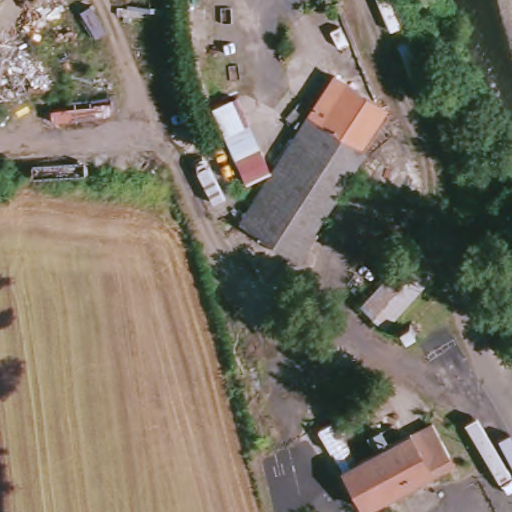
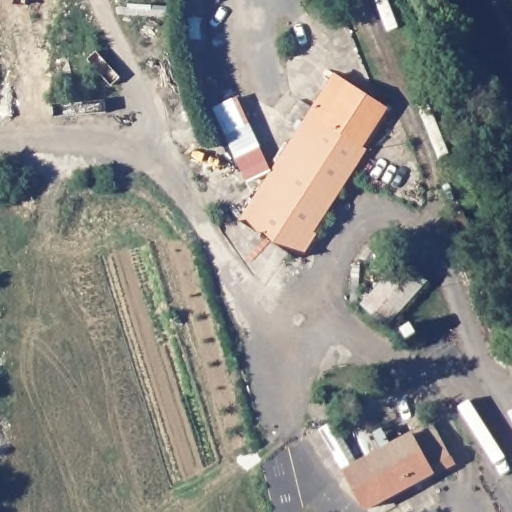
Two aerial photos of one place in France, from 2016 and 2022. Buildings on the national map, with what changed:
unchanged [(201,72),(199,58),(209,56),(212,73),(233,65),(245,98),(237,101),(215,110),(201,72)]
unchanged [(315,117),(317,113),(318,111),(334,88),(345,95),(370,111),(373,106),(377,108),(384,112),(380,117),(362,147),(315,117)]
unchanged [(215,110),(237,101),(263,176),(242,184),(215,110)]
unchanged [(315,117),(362,147),(366,150),(301,252),(249,219),(260,201),(315,117)]
unchanged [(402,262),(423,279),(390,324),(367,308),(402,262)]
unchanged [(442,454),(384,490),(385,495),(363,509),(345,480),(323,440),(336,433),(355,465),(425,425),(442,454)]

